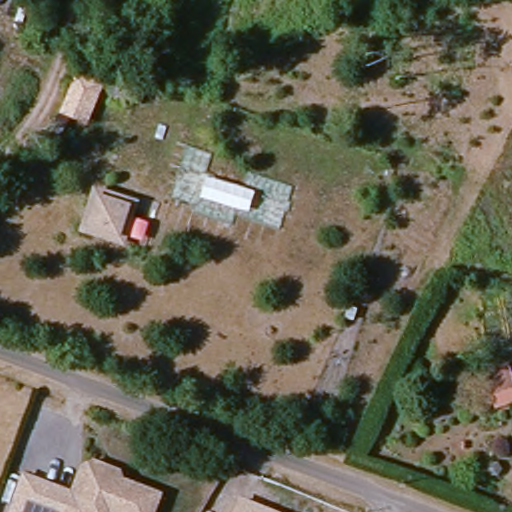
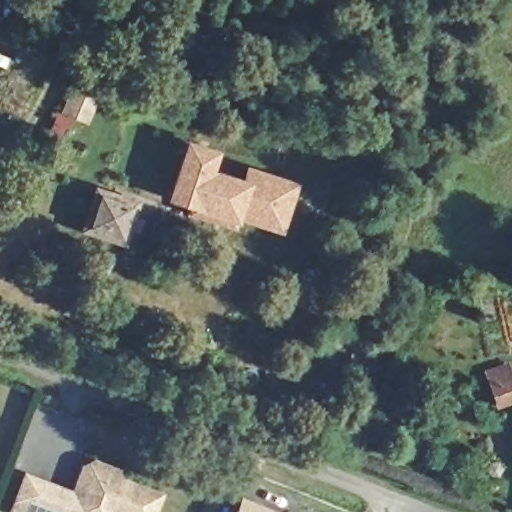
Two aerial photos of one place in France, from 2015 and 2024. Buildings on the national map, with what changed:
new [(219,151),(212,170),(242,179),(247,165),(299,182),(282,234),(239,220),(235,231),(185,215),(187,208),(165,200),(185,140),(219,151)]
unchanged [(94,184),(140,199),(126,248),(78,232),(94,184)]
unchanged [(512,394),(512,406),(496,411),(491,392),(486,373),(505,367),(512,394)]
unchanged [(20,472),(34,479),(67,494),(85,454),(106,464),(117,469),(114,478),(152,496),(146,512),(14,512),(4,507),(20,472)]
unchanged [(277,512),(234,512),(240,496),(277,512)]

